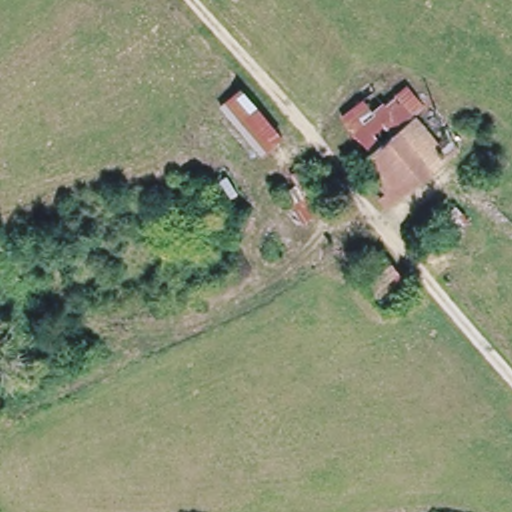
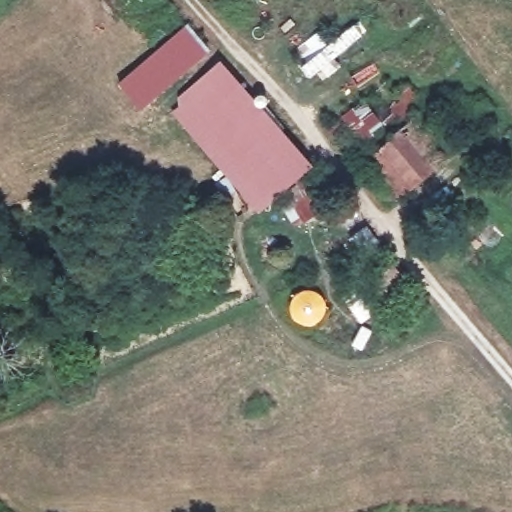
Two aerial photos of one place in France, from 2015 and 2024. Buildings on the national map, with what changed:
new [(189,22),(209,45),(140,102),(121,77),(189,22)]
new [(315,165),(259,214),(171,112),(182,104),(177,97),(220,60),(315,165)]
unchanged [(381,208),(372,197),(381,190),(355,159),(368,151),(335,115),(384,80),(393,89),(406,80),(426,115),(448,147),(381,208)]
demolished [(280,137),(257,162),(212,109),(237,87),(280,137)]

